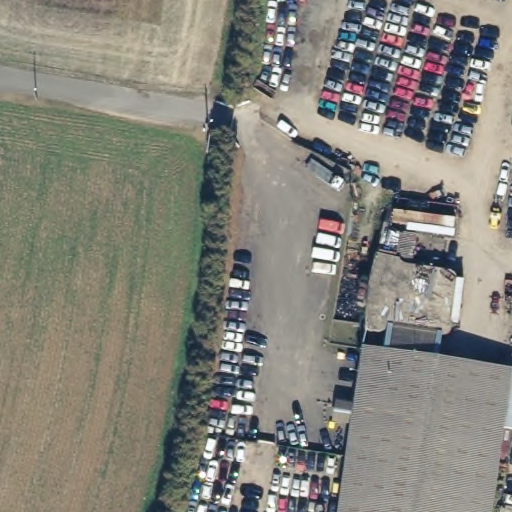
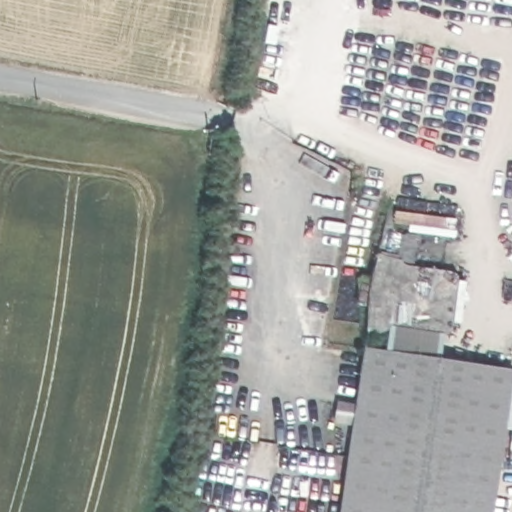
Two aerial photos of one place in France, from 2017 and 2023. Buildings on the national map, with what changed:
unchanged [(397,209),(395,221),(397,227),(401,232),(406,236),(406,237),(417,241),(419,245),(417,262),(453,271),(460,277),(462,281),(455,323),(452,328),(448,332),(443,334),(434,333),(402,328),(393,327),(387,329),(382,330),(372,326),(370,322),(370,316),(372,309),(370,305),(363,302),(362,299),(365,279),(368,277),(375,276),(390,208),(397,209)]
unchanged [(512,376),(512,432),(507,432),(494,512),(345,512),(368,355),(512,376)]

